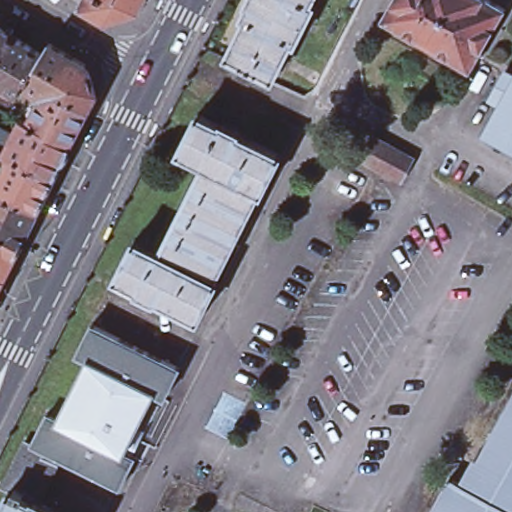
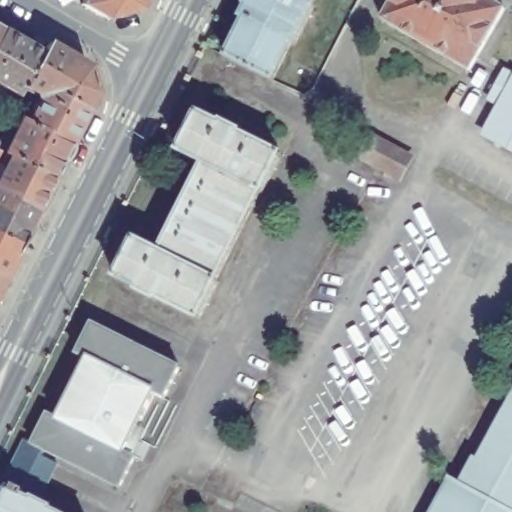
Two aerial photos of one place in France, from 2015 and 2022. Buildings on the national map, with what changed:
unchanged [(104,18),(78,4),(79,3),(80,0),(140,0),(137,8),(104,18)]
unchanged [(315,8),(295,47),(292,46),(272,84),(227,60),(245,22),(241,20),(247,8),(245,7),(249,0),(314,0),(312,6),(315,8)]
unchanged [(382,23),(394,0),(486,0),(505,11),(470,74),(382,23)]
unchanged [(0,39),(0,26),(5,29),(0,39)]
unchanged [(27,82),(26,84),(20,93),(0,81),(0,39),(5,29),(44,52),(27,82)]
unchanged [(87,63),(97,96),(91,107),(65,93),(45,98),(41,97),(40,91),(26,84),(27,82),(44,52),(50,41),(87,63)]
unchanged [(477,132),(512,74),(512,153),(477,132)]
unchanged [(30,121),(42,99),(41,97),(45,98),(65,93),(91,107),(73,142),(30,121)]
unchanged [(198,117),(220,128),(222,126),(241,135),(240,137),(281,158),(262,197),(260,195),(216,283),(218,284),(200,323),(157,302),(155,304),(138,295),(139,293),(116,281),(135,243),(161,255),(205,168),(180,155),(198,117)]
unchanged [(9,134),(14,137),(23,118),(30,121),(73,142),(56,177),(13,155),(0,148),(0,125),(11,130),(9,134)]
unchanged [(362,160),(372,140),(412,161),(401,181),(362,160)]
unchanged [(56,177),(40,210),(23,243),(0,231),(0,148),(13,155),(56,177)]
unchanged [(0,231),(23,243),(6,276),(0,273),(0,231)]
unchanged [(0,288),(0,273),(6,276),(0,288)]
unchanged [(49,412),(59,417),(89,358),(79,353),(94,322),(180,365),(165,395),(155,390),(125,450),(135,455),(120,486),(60,456),(34,442),(49,412)]
unchanged [(457,483),(470,459),(474,461),(512,391),(512,512),(426,512),(445,476),(457,483)]
unchanged [(52,508),(60,512),(0,512),(0,510),(11,488),(34,500),(35,497),(38,499),(53,507),(52,508)]

